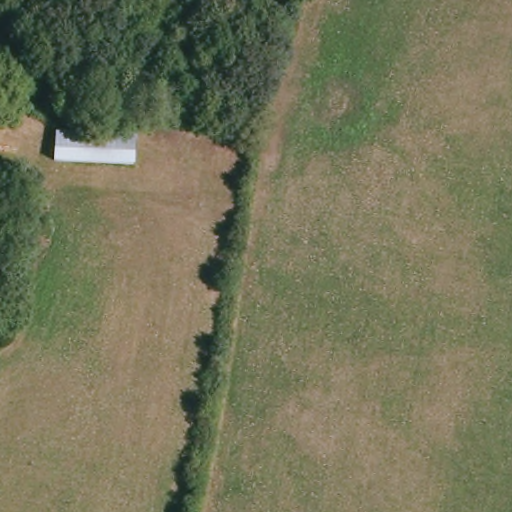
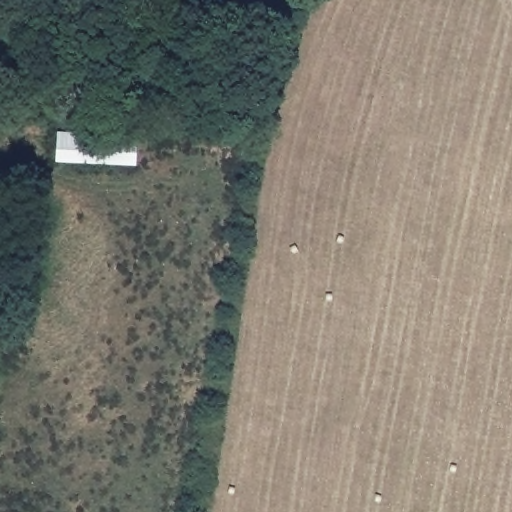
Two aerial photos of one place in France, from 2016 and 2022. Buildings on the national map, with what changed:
unchanged [(133,167),(50,162),(53,128),(136,134),(133,167)]

